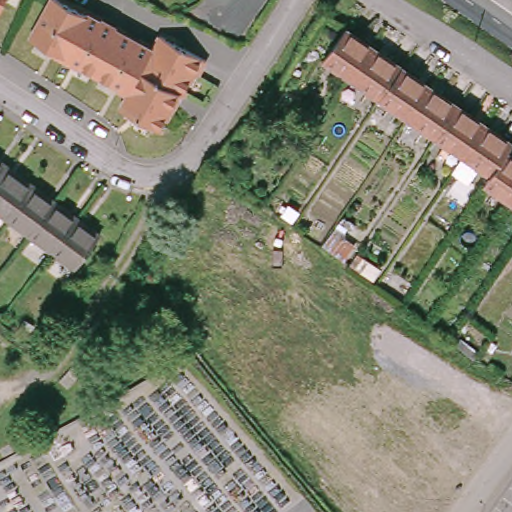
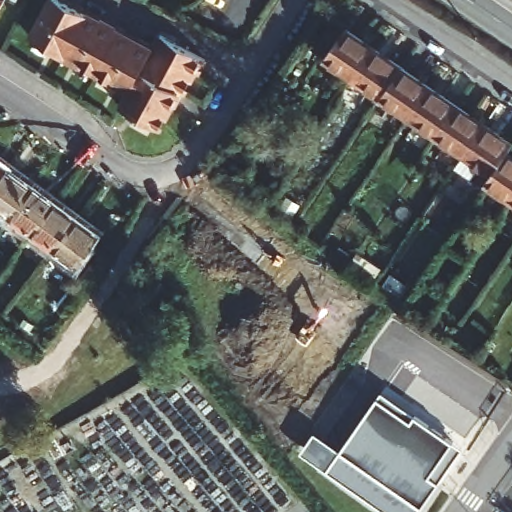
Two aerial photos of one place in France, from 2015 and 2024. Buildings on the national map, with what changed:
unchanged [(0,0),(7,0),(0,13),(0,0)]
unchanged [(155,35),(201,59),(163,127),(117,105),(125,88),(27,38),(46,0),(58,0),(152,44),(155,35)]
unchanged [(380,53),(359,84),(330,64),(351,33),(380,53)]
unchanged [(408,73),(386,103),(359,84),(380,53),(408,73)]
unchanged [(435,91),(413,122),(386,103),(408,73),(435,91)]
unchanged [(462,110),(441,141),(413,122),(435,91),(462,110)]
unchanged [(491,130),(470,161),(441,141),(462,110),(491,130)]
unchanged [(512,145),(512,157),(496,180),(470,161),(491,130),(512,145)]
unchanged [(512,157),(512,201),(491,187),(496,180),(512,157)]
unchanged [(0,185),(0,162),(11,169),(0,185)]
unchanged [(17,223),(0,210),(0,185),(11,169),(40,191),(17,223)]
unchanged [(61,207),(38,238),(17,223),(40,191),(61,207)]
unchanged [(83,223),(60,255),(38,238),(61,207),(83,223)]
unchanged [(104,239),(80,270),(60,255),(83,223),(104,239)]
new [(382,398),(461,452),(443,479),(437,475),(416,512),(387,512),(302,454),(315,434),(341,453),(382,398)]

